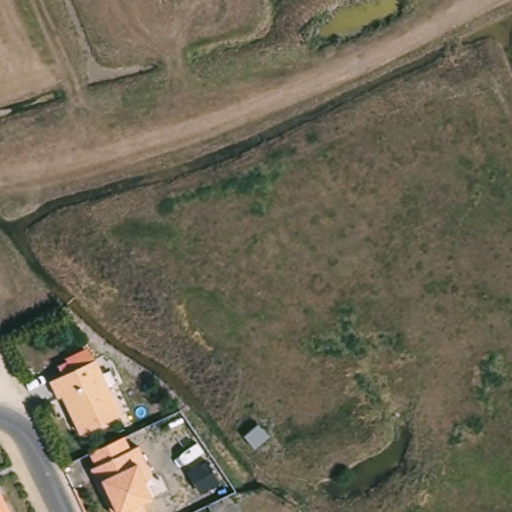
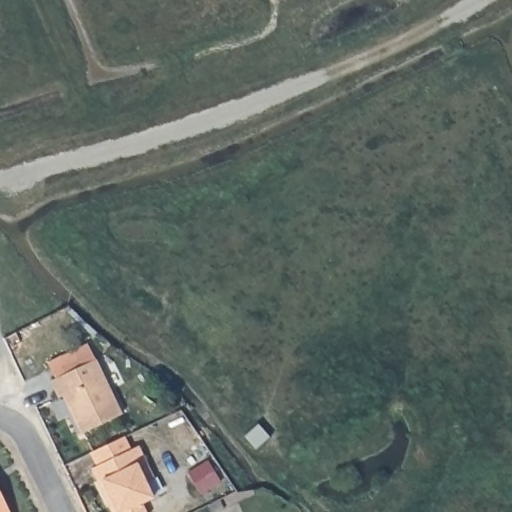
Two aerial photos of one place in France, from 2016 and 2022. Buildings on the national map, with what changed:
unchanged [(103,366),(129,419),(88,440),(70,403),(66,405),(57,389),(103,366)]
unchanged [(154,482),(147,486),(155,502),(142,510),(143,512),(115,512),(112,507),(108,509),(91,475),(96,473),(90,460),(124,443),(130,456),(138,451),(154,482)]
unchanged [(0,497),(7,512),(0,512),(0,497)]

